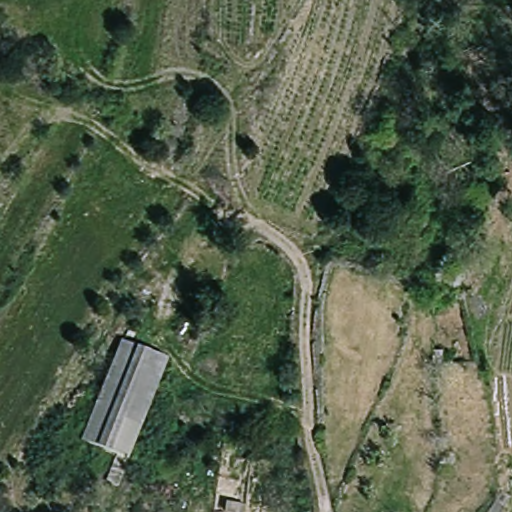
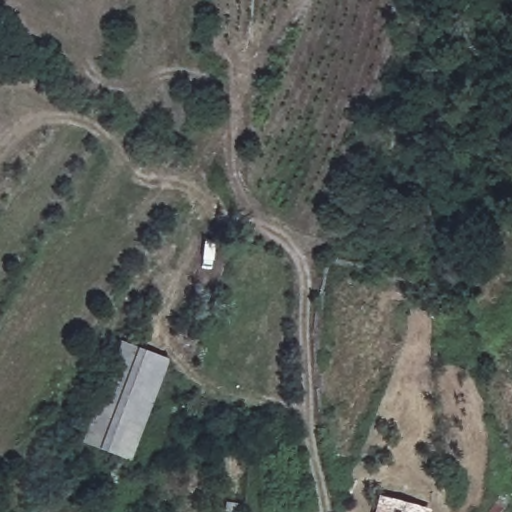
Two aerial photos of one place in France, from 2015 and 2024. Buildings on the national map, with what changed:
unchanged [(118,478),(105,473),(116,448),(84,435),(124,335),(168,351),(118,478)]
new [(432,510),(431,512),(375,512),(379,496),(432,510)]

